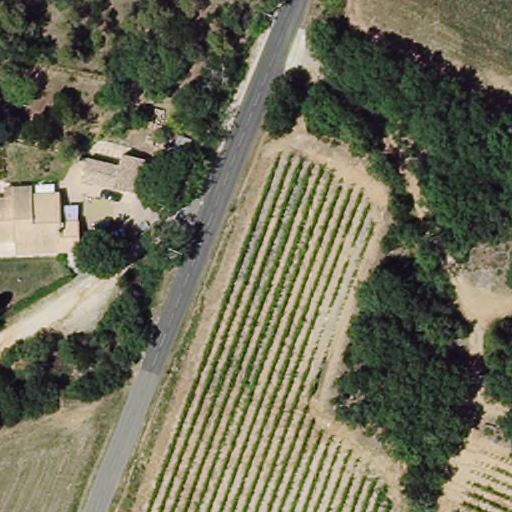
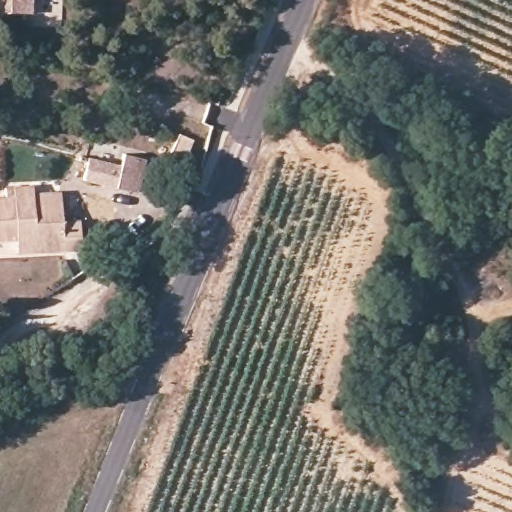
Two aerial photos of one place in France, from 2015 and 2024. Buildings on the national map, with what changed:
new [(30,15),(0,14),(0,0),(30,0),(30,15)]
unchanged [(118,191),(90,185),(95,164),(121,172),(118,191)]
unchanged [(0,246),(0,204),(16,204),(16,193),(33,190),(35,198),(61,198),(63,210),(63,225),(80,225),(81,255),(39,258),(22,260),(19,245),(0,246)]

